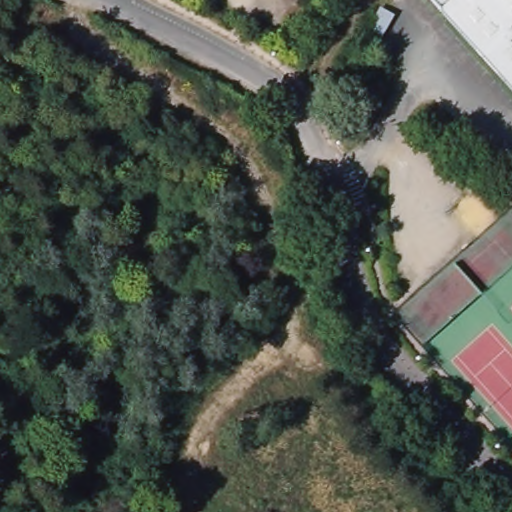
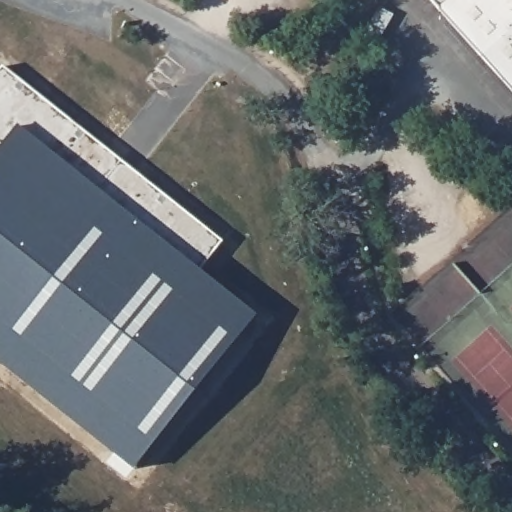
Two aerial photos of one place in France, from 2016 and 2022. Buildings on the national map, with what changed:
unchanged [(432,0),(512,0),(512,89),(432,0)]
new [(8,369),(0,366),(0,153),(4,148),(0,145),(0,70),(3,66),(223,241),(200,270),(257,316),(136,470),(8,369)]

